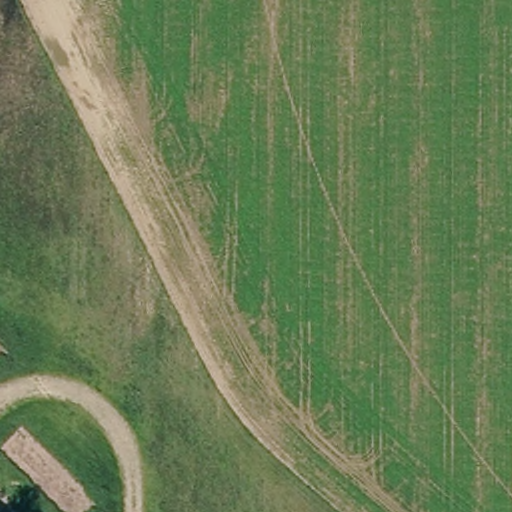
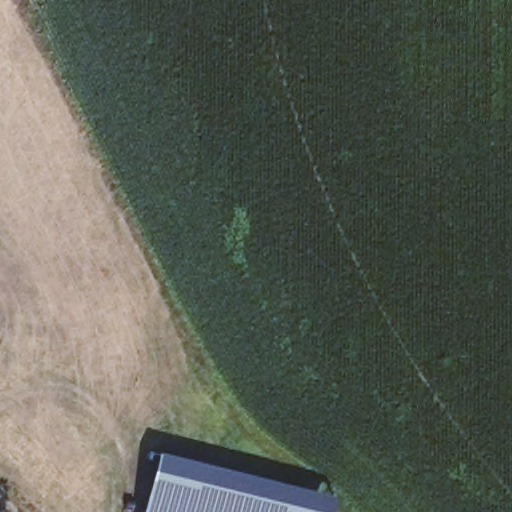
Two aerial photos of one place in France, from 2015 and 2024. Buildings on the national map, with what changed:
new [(340,496),(335,512),(143,512),(157,451),(340,496)]

